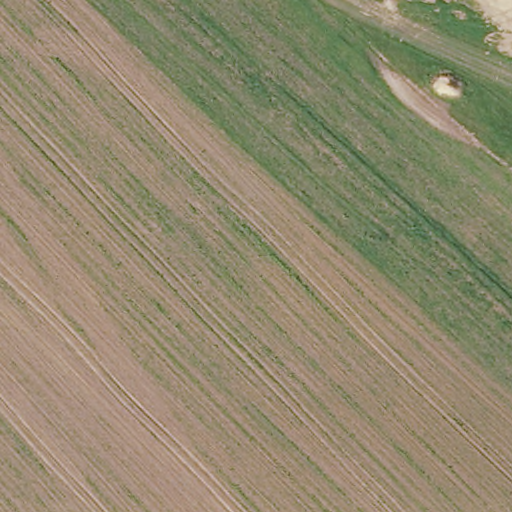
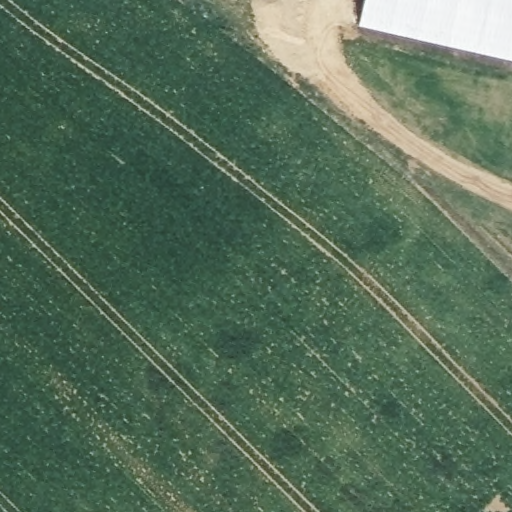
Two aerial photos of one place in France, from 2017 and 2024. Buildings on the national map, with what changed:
new [(360,24),(365,0),(512,0),(512,58),(360,24)]

